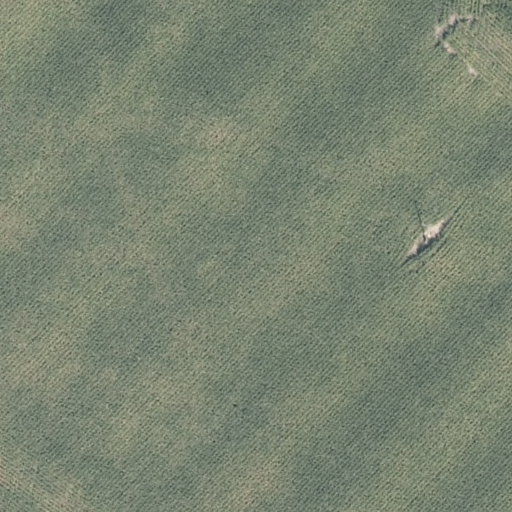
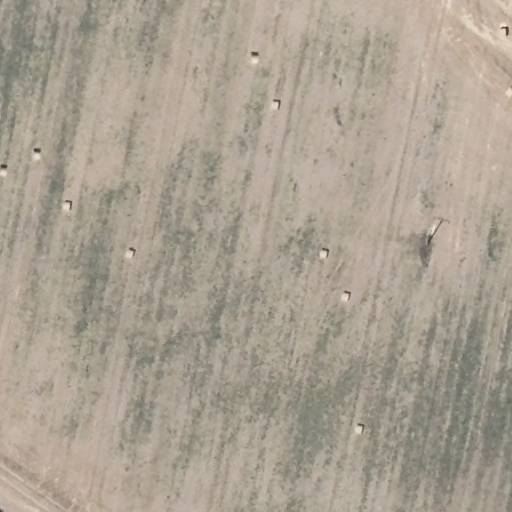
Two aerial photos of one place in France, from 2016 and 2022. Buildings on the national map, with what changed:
[]

